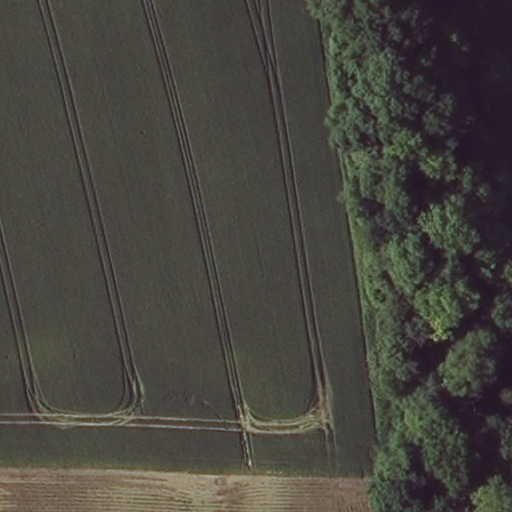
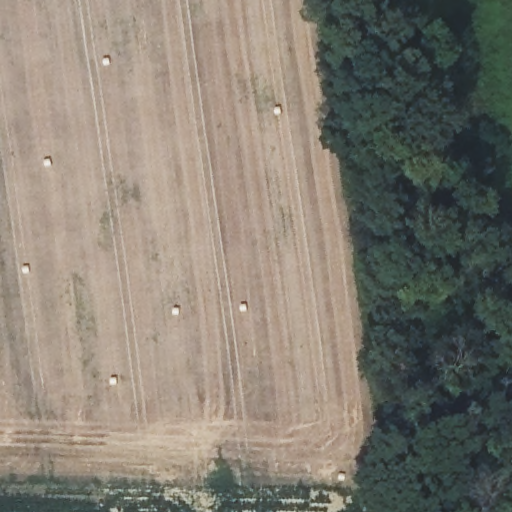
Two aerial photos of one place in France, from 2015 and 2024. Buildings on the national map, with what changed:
[]

